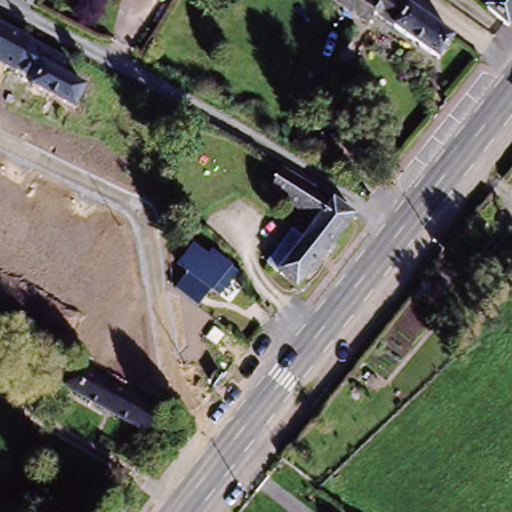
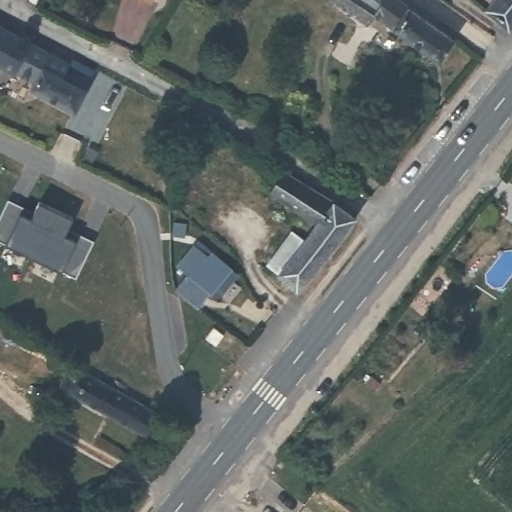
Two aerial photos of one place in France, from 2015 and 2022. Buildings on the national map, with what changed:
unchanged [(151,2),(146,0),(152,0),(151,2)]
unchanged [(449,35),(435,55),(372,11),(364,21),(342,5),(334,0),(399,0),(449,35)]
unchanged [(501,0),(512,0),(512,27),(492,12),(501,0)]
unchanged [(69,64),(62,77),(87,91),(75,112),(32,89),(35,84),(0,65),(0,27),(69,64)]
unchanged [(287,175),(339,202),(360,219),(302,290),(274,266),(305,228),(315,235),(323,226),(275,194),(287,175)]
new [(67,267),(40,254),(12,240),(8,239),(0,235),(0,227),(1,225),(12,201),(39,214),(55,222),(72,230),(97,242),(87,266),(82,275),(71,269),(67,267)]
unchanged [(232,268),(213,292),(197,278),(183,266),(197,249),(212,260),(215,256),(232,268)]
unchanged [(189,279),(209,296),(199,307),(180,291),(189,279)]
unchanged [(79,363),(165,410),(153,430),(68,382),(79,363)]

